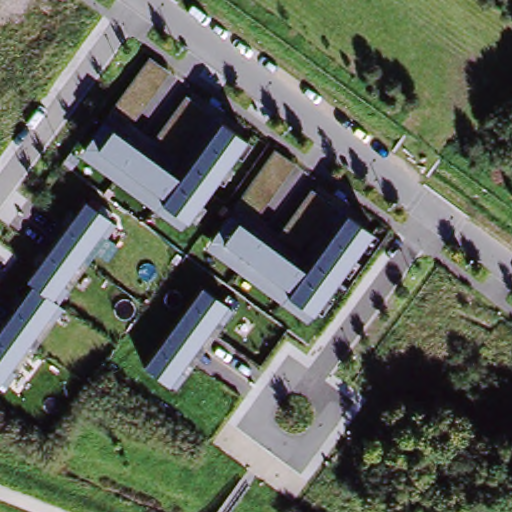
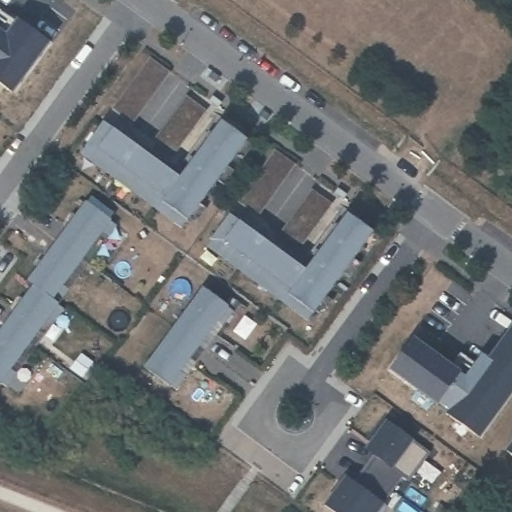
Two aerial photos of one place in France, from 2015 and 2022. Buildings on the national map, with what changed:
new [(18,23),(48,45),(13,92),(0,83),(0,36),(5,41),(18,23)]
unchanged [(172,73),(135,126),(113,107),(150,57),(172,73)]
unchanged [(209,114),(177,156),(154,140),(184,97),(209,114)]
unchanged [(248,142),(183,230),(78,156),(110,117),(187,168),(191,162),(221,123),(248,142)]
unchanged [(297,166),(259,218),(239,203),(274,151),(297,166)]
unchanged [(337,208),(304,252),(280,233),(311,190),(337,208)]
unchanged [(54,300),(58,303),(0,385),(0,332),(32,286),(28,282),(85,201),(110,220),(54,300)]
unchanged [(376,233),(309,322),(207,248),(236,208),(314,261),(317,258),(347,216),(376,233)]
unchanged [(234,310),(227,323),(221,318),(184,369),(189,374),(178,392),(141,369),(202,288),(234,310)]
new [(380,363),(403,332),(450,367),(449,369),(462,378),(508,316),(512,319),(512,374),(471,430),(439,407),(438,409),(426,400),(427,398),(380,363)]
new [(366,450),(371,443),(386,423),(429,454),(408,483),(404,481),(395,493),(363,469),(373,455),(366,450)]
new [(501,443),(512,428),(512,452),(501,443)]
new [(345,478),(353,484),(363,469),(395,493),(386,506),(389,508),(387,512),(334,512),(325,505),(340,485),(345,478)]

